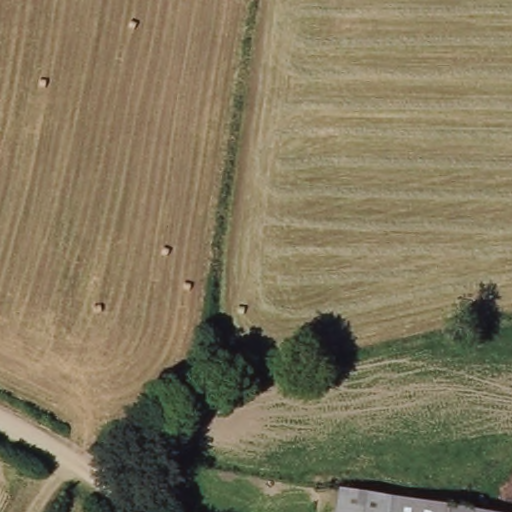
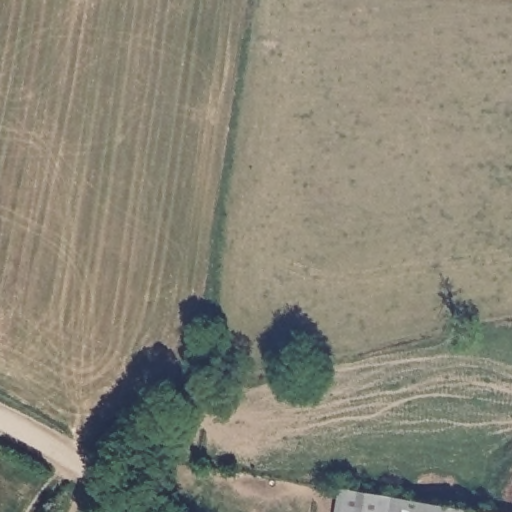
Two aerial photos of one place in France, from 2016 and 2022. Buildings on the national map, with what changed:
unchanged [(397,497),(394,512),(343,512),(348,487),(397,497)]
unchanged [(469,512),(394,512),(397,497),(469,512)]

